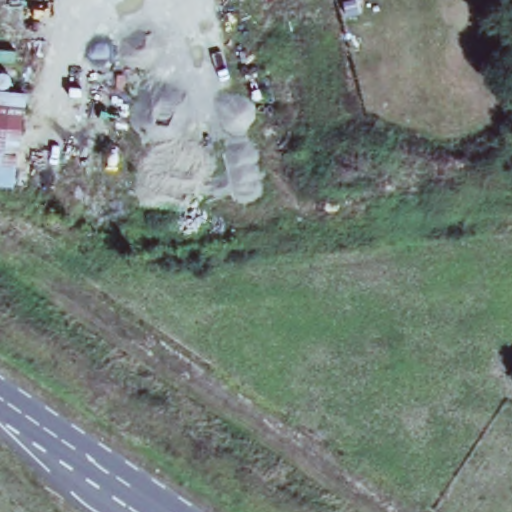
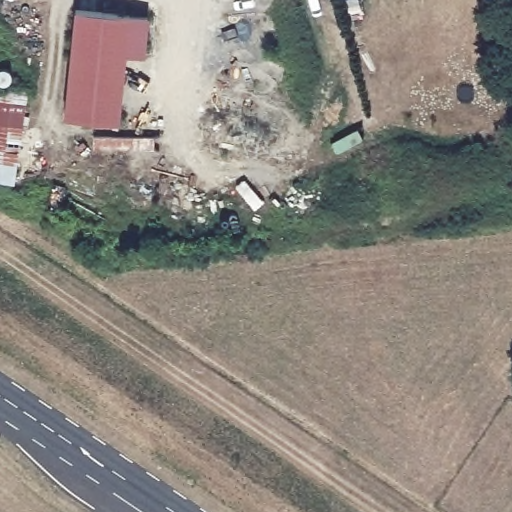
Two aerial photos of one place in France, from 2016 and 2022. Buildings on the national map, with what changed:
new [(148,17),(145,55),(126,54),(118,122),(64,116),(75,11),(148,17)]
unchanged [(27,74),(22,120),(14,182),(0,181),(0,71),(27,74)]

